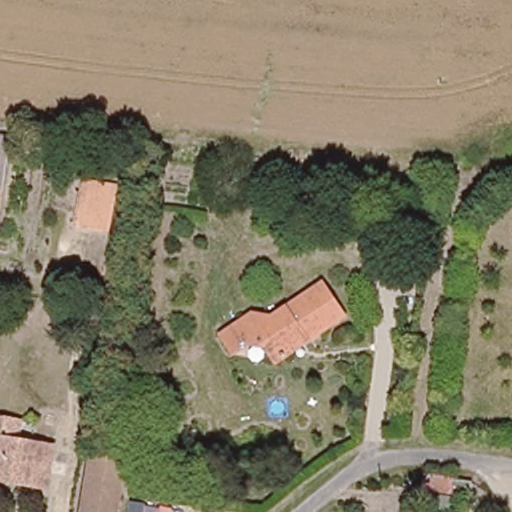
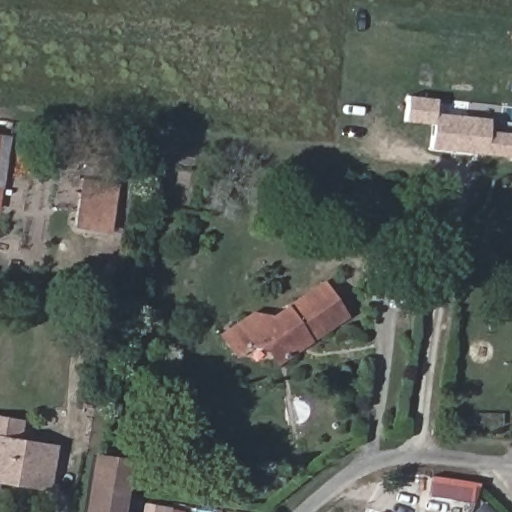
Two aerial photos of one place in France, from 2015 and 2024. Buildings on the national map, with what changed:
new [(430,148),(432,123),(404,120),(407,95),(436,98),(434,111),(489,117),(487,131),(512,134),(512,157),(430,148)]
unchanged [(0,189),(0,138),(9,139),(0,189)]
unchanged [(79,226),(84,188),(85,181),(120,186),(119,193),(113,231),(79,226)]
unchanged [(279,361),(271,346),(250,342),(237,350),(225,331),(255,311),(274,316),(326,283),(348,317),(310,341),(296,350),(279,361)]
unchanged [(20,436),(57,443),(49,485),(21,481),(0,477),(0,414),(22,418),(20,436)]
unchanged [(127,460),(120,495),(117,512),(83,512),(94,454),(127,460)]

